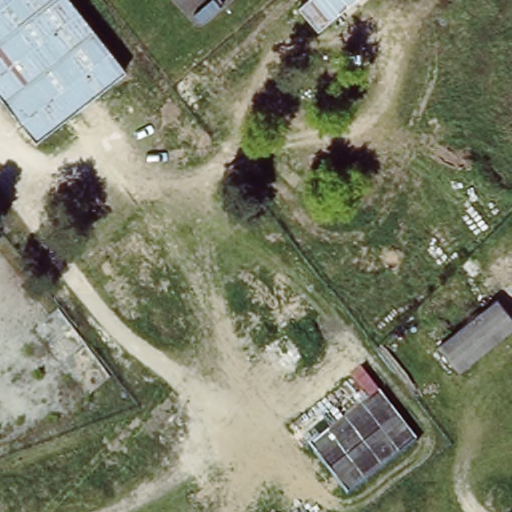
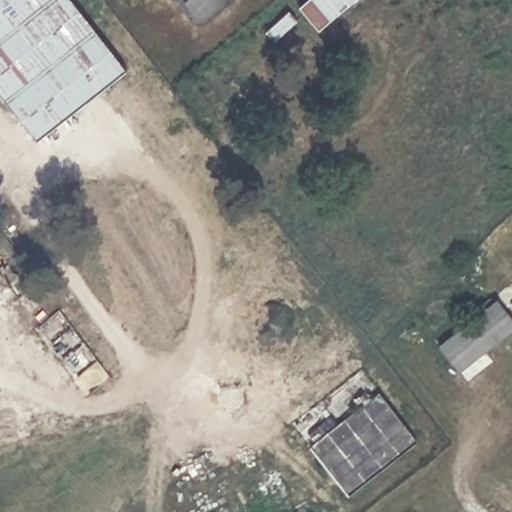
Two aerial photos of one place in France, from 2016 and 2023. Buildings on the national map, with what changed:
unchanged [(63,0),(118,71),(31,140),(0,101),(0,0),(63,0)]
unchanged [(499,301),(512,318),(512,333),(459,373),(440,346),(499,301)]
unchanged [(420,436),(349,492),(293,418),(361,362),(420,436)]

